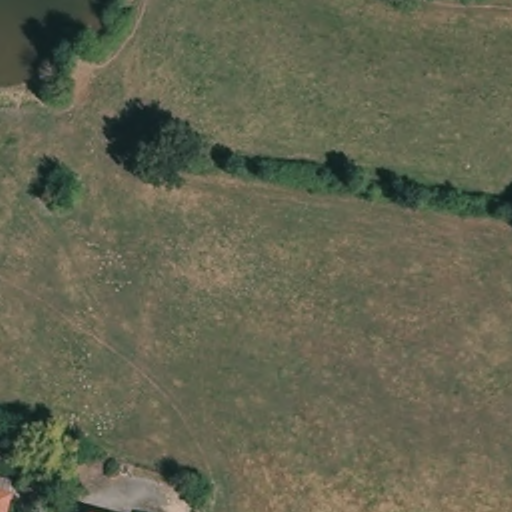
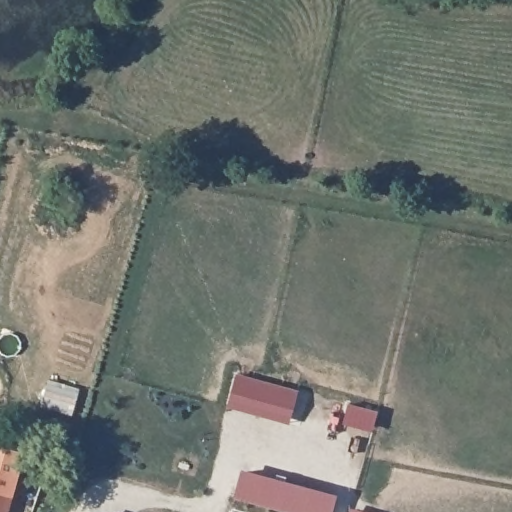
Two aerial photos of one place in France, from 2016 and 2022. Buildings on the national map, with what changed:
new [(290,415),(229,399),(236,372),(298,391),(290,415)]
new [(336,494),(332,512),(296,512),(233,496),(241,467),(336,494)]
unchanged [(12,484),(5,512),(0,512),(0,480),(12,484)]

